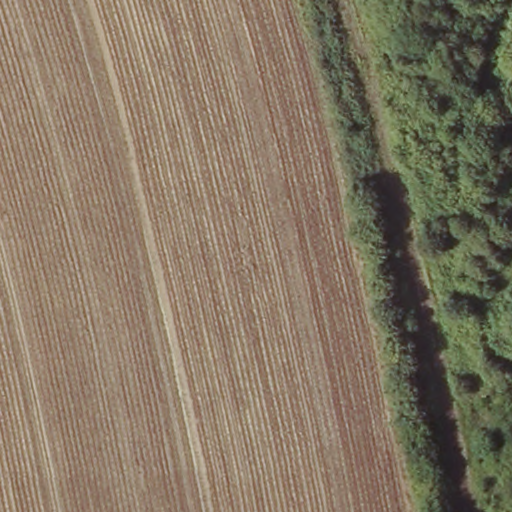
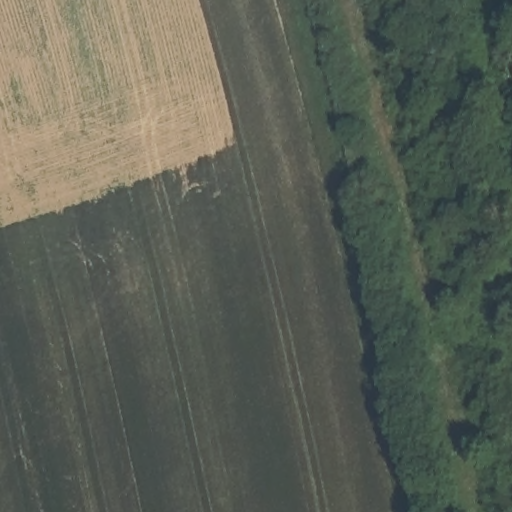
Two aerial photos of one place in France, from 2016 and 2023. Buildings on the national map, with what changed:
[]

